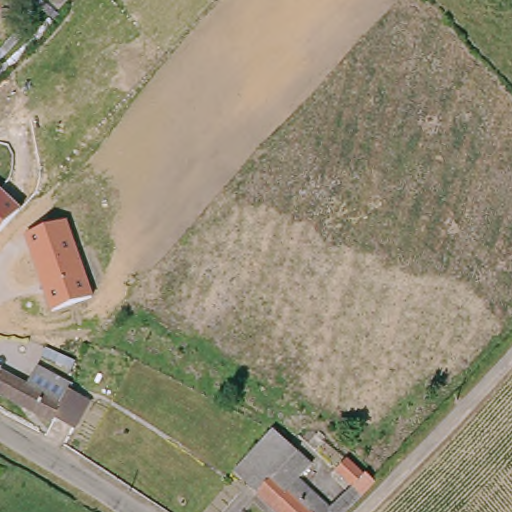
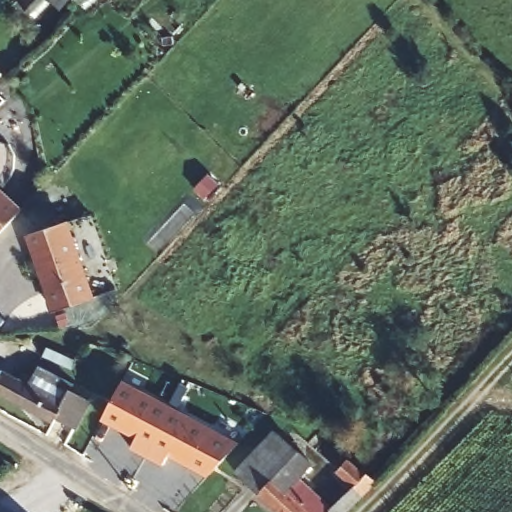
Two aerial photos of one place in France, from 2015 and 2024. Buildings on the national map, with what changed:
new [(60,11),(48,0),(71,0),(60,11)]
unchanged [(22,209),(0,234),(0,189),(22,209)]
unchanged [(68,221),(93,298),(50,312),(26,237),(68,221)]
unchanged [(25,382),(38,362),(72,383),(71,388),(86,397),(70,426),(54,417),(51,422),(0,390),(0,367),(25,382)]
new [(163,466),(130,449),(136,439),(102,421),(123,380),(237,441),(216,482),(169,457),(163,466)]
unchanged [(275,431),(301,453),(291,462),(300,470),(296,474),(325,499),(332,506),(353,483),(347,476),(340,470),(352,457),(359,463),(373,476),(360,492),(351,502),(342,512),(278,512),(237,475),(274,431),(275,431)]

